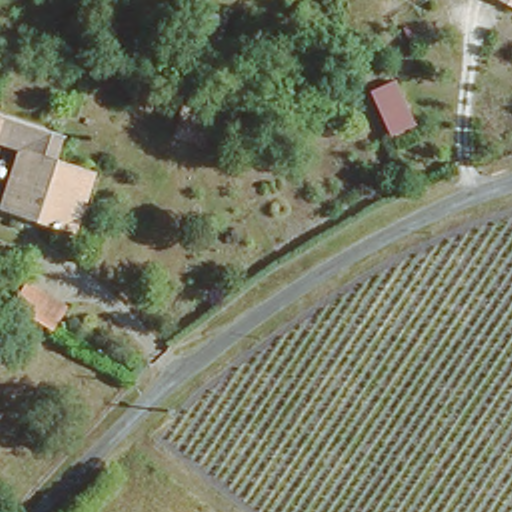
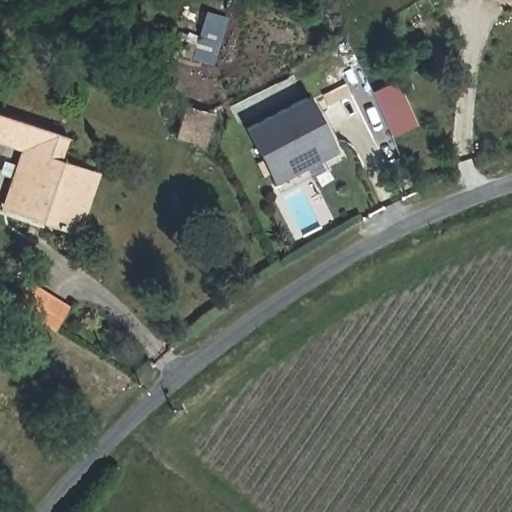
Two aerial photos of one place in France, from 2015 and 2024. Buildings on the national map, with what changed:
unchanged [(512,0),(512,4),(506,0),(512,0)]
unchanged [(407,123),(389,131),(370,87),(386,79),(407,123)]
new [(272,183),(244,126),(307,94),(336,150),(272,183)]
unchanged [(60,131),(52,151),(80,162),(57,229),(0,209),(0,199),(21,139),(0,131),(0,110),(60,131)]
unchanged [(202,125),(191,153),(171,144),(183,116),(202,125)]
unchanged [(79,305),(62,331),(21,303),(40,277),(79,305)]

